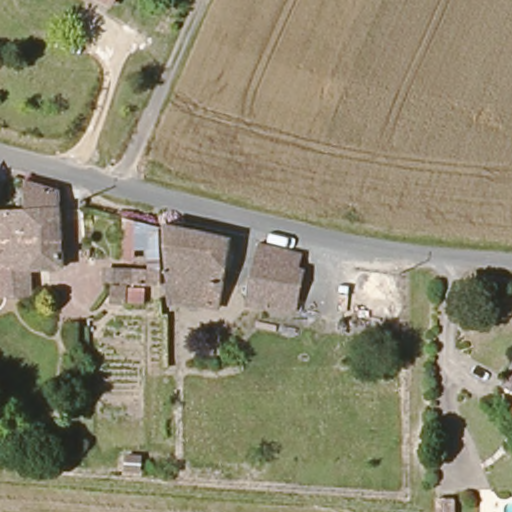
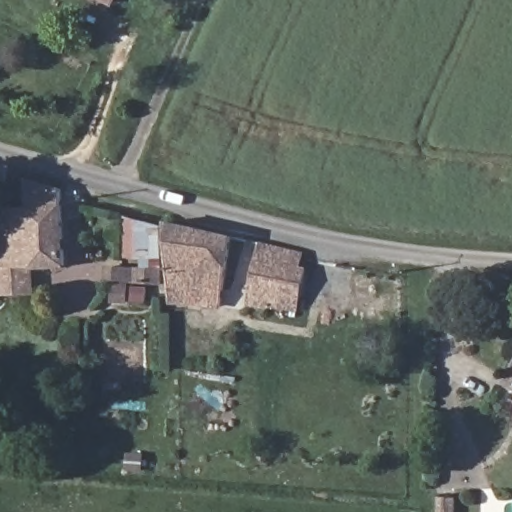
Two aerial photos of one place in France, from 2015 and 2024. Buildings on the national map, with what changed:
unchanged [(112,0),(120,0),(118,4),(112,0)]
unchanged [(3,298),(0,298),(0,266),(2,266),(0,224),(0,213),(33,211),(33,183),(66,192),(68,270),(31,272),(31,297),(3,298)]
unchanged [(173,229),(238,243),(223,316),(167,303),(173,229)]
unchanged [(300,269),(306,271),(298,313),(251,305),(259,262),(257,260),(260,239),(302,248),(300,269)]
unchanged [(118,278),(105,278),(105,263),(118,263),(118,278)]
unchanged [(512,382),(512,385),(511,384),(512,382)]

